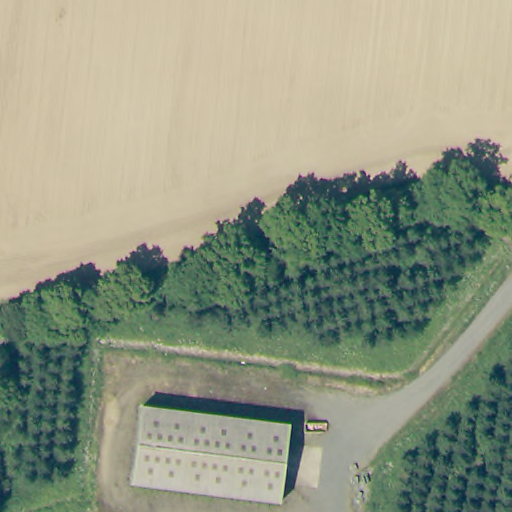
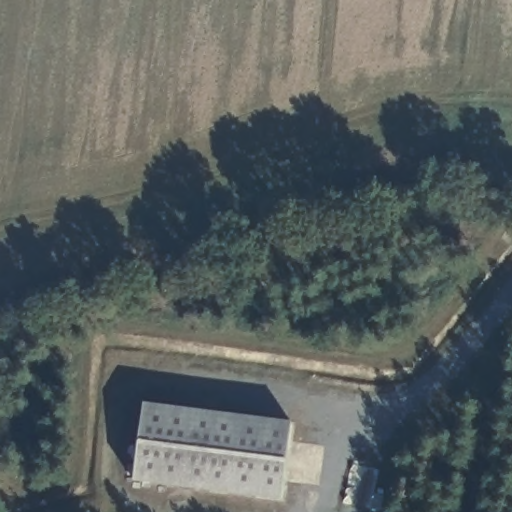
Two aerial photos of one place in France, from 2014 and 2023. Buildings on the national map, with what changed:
unchanged [(292,423),(283,500),(133,481),(142,404),(292,423)]

